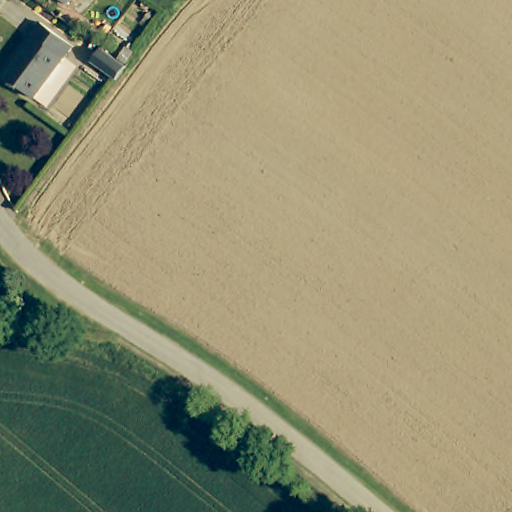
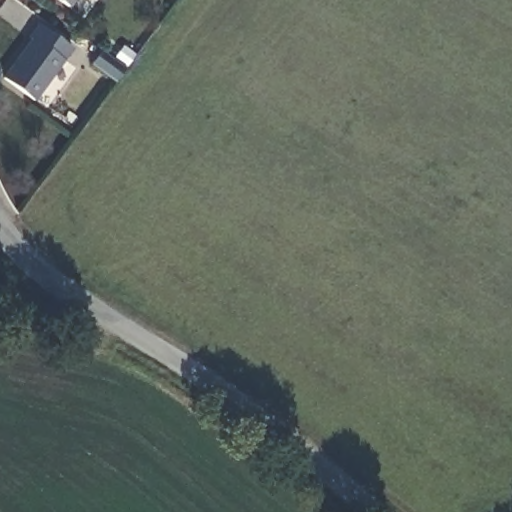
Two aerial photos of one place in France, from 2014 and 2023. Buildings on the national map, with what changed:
unchanged [(75,49),(37,100),(9,80),(37,40),(34,37),(42,26),(75,49)]

